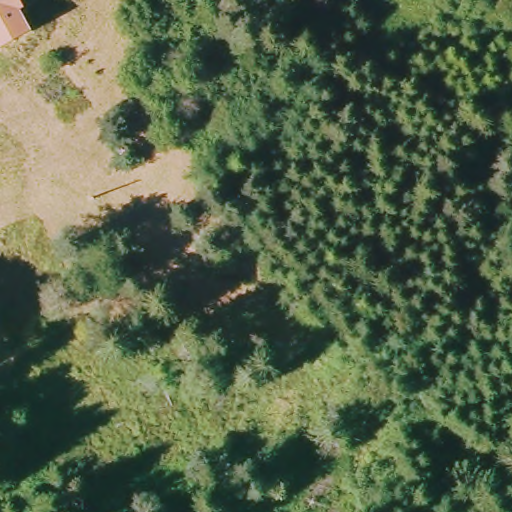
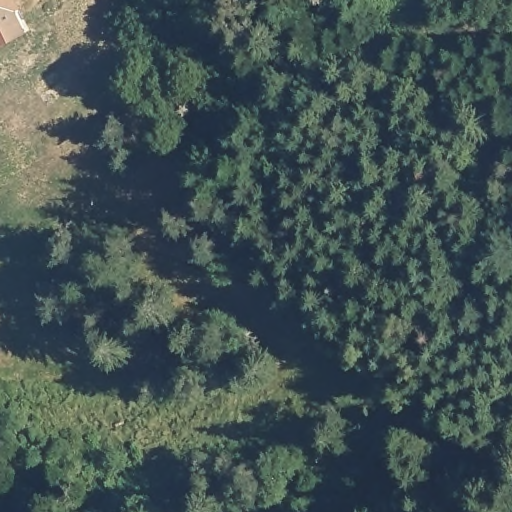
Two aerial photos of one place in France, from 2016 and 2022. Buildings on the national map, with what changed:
unchanged [(0,51),(0,0),(3,0),(27,35),(0,51)]

